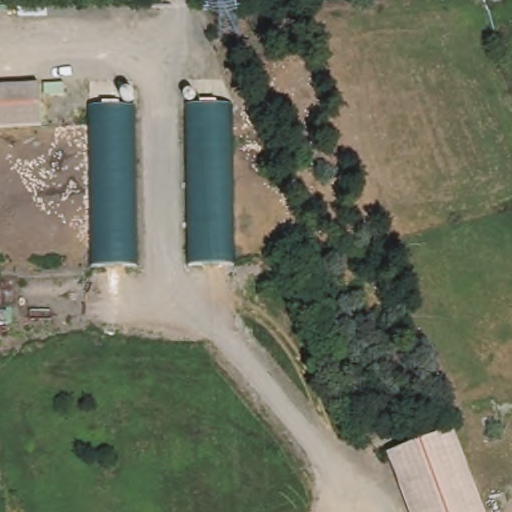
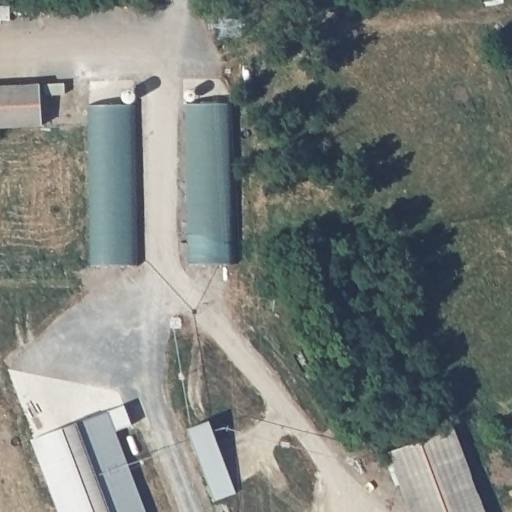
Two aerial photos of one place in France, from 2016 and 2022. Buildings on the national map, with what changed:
unchanged [(45,86),(48,128),(0,129),(0,89),(45,86)]
unchanged [(233,104),(230,264),(183,263),(185,103),(233,104)]
unchanged [(140,107),(138,267),(90,266),(93,106),(140,107)]
new [(147,512),(59,512),(31,439),(125,406),(132,426),(117,432),(147,512)]
new [(216,501),(188,429),(210,421),(237,494),(216,501)]
unchanged [(387,450),(456,425),(489,512),(411,512),(387,450)]

